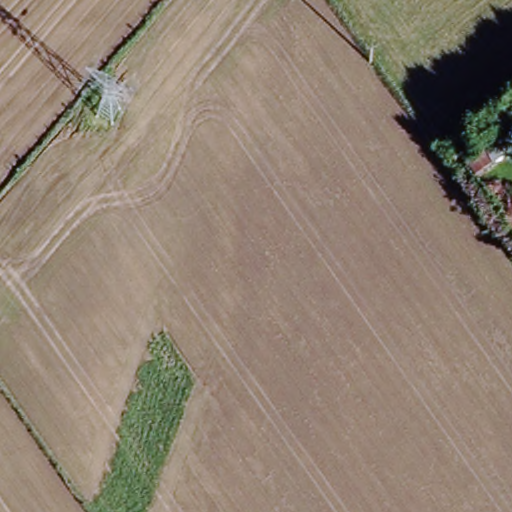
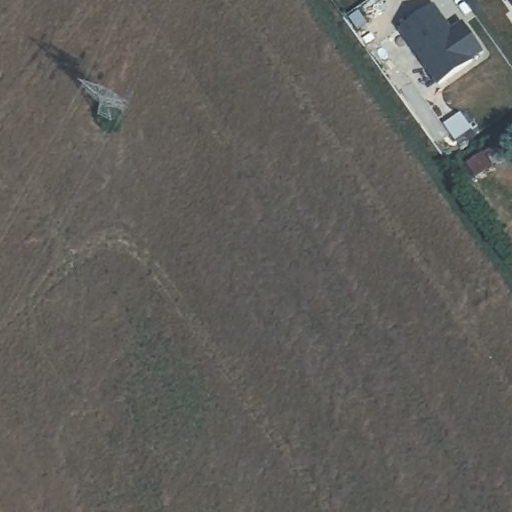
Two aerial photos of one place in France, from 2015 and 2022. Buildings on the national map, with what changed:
new [(512,0),(512,7),(507,0),(512,0)]
new [(487,55),(474,64),(476,66),(443,88),(404,32),(437,9),(455,36),(468,27),(487,55)]

